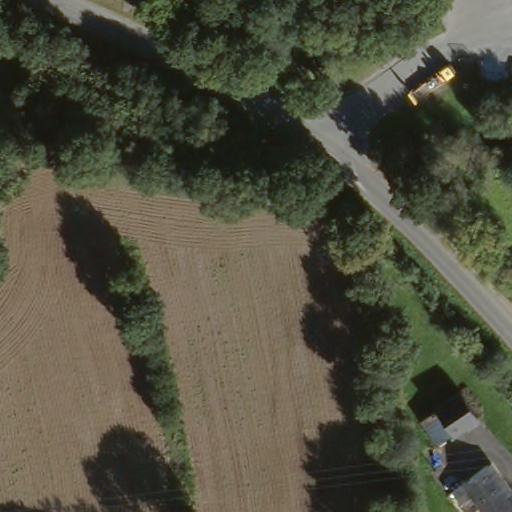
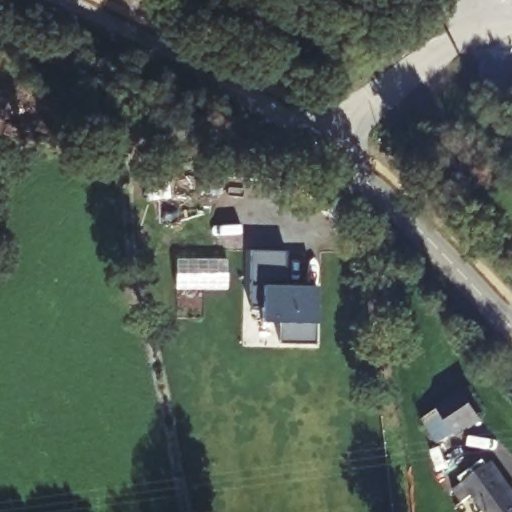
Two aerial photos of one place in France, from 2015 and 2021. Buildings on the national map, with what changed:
new [(286,286),(317,286),(316,323),(316,345),(279,344),(279,324),(263,323),(263,305),(249,306),(251,250),(286,251),(286,286)]
unchanged [(424,419),(439,410),(437,406),(466,387),(468,390),(484,416),(470,425),(473,429),(457,439),(454,436),(441,445),(424,419)]
unchanged [(463,500),(452,483),(489,459),(495,455),(512,480),(512,512),(485,512),(473,493),(463,500)]

